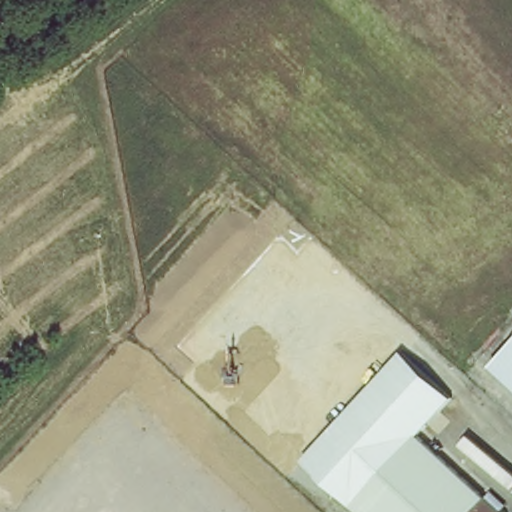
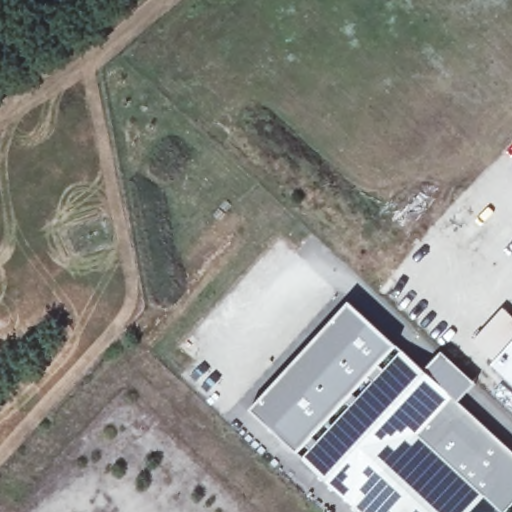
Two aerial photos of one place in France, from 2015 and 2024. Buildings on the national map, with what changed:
new [(394,347),(295,452),(250,410),(349,304),(394,347)]
unchanged [(383,512),(314,448),(404,351),(453,397),(419,434),(501,511),(500,512),(382,512),(383,512)]
new [(419,434),(453,397),(426,372),(442,354),(474,384),(456,402),(512,454),(512,499),(501,511),(419,434)]
unchanged [(497,371),(512,354),(512,384),(497,371)]

